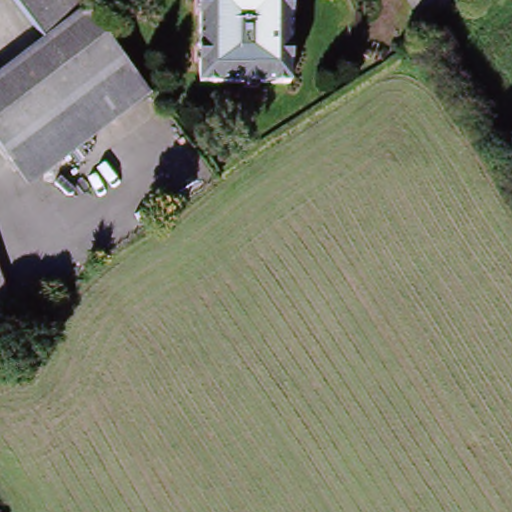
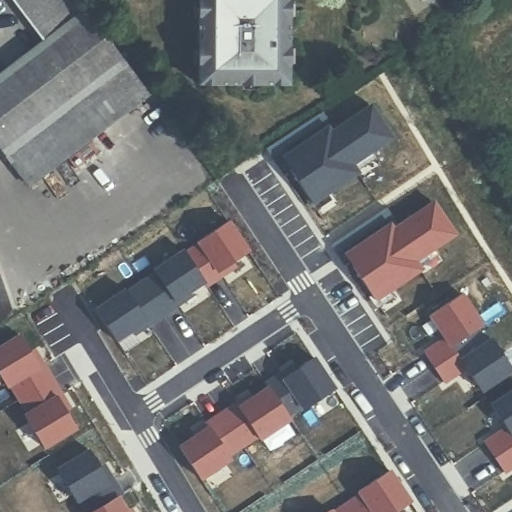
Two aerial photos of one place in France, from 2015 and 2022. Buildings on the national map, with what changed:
unchanged [(13,5),(9,0),(29,0),(13,5)]
unchanged [(29,0),(73,0),(80,10),(40,40),(13,5),(29,0)]
unchanged [(290,85),(200,85),(200,0),(290,0),(290,85)]
unchanged [(80,10),(144,94),(25,186),(0,154),(0,71),(40,40),(80,10)]
new [(372,108),(394,140),(353,167),(359,175),(314,206),(292,172),(336,143),(331,135),(372,108)]
new [(273,159),(267,151),(324,114),(329,122),(273,159)]
new [(336,143),(292,172),(284,160),(328,131),(336,143)]
new [(435,205),(457,236),(416,264),(422,272),(376,303),(355,269),(399,239),(394,232),(435,205)]
new [(388,210),(393,218),(337,255),(332,247),(388,210)]
new [(224,277),(207,288),(205,284),(206,283),(188,256),(202,247),(200,243),(230,223),(250,254),(235,264),(237,268),(224,277)]
new [(399,239),(355,269),(346,257),(391,228),(399,239)]
new [(206,283),(176,303),(155,273),(186,252),(206,283)]
demolished [(13,315),(0,324),(0,276),(13,315)]
new [(0,324),(0,276),(13,315),(0,324)]
new [(132,332),(117,342),(97,312),(127,292),(130,295),(158,276),(176,303),(177,303),(191,293),(193,297),(180,307),(149,327),(135,336),(132,332)]
new [(483,328),(452,348),(431,317),(462,297),(483,328)]
new [(488,345),(462,362),(467,370),(445,385),(425,355),(447,341),(452,348),(479,330),(488,345)]
new [(21,337),(40,369),(11,386),(8,388),(0,375),(0,351),(21,337)]
new [(512,371),(512,374),(482,393),(462,362),(492,342),(512,371)]
new [(67,414),(59,399),(58,398),(30,415),(11,386),(40,369),(40,368),(31,353),(36,350),(45,365),(63,397),(71,411),(67,414)]
new [(315,359),(336,391),(305,411),(284,380),(315,359)]
new [(303,409),(289,418),(270,389),(269,389),(266,386),(282,375),(296,366),(299,370),(285,379),(284,380),(303,409)]
new [(270,389),(291,421),(260,441),(240,409),(270,389)]
new [(207,425),(237,405),(251,395),(255,400),(240,409),(258,438),(230,457),(211,428),(210,429),(195,439),(193,435),(207,425)]
new [(512,438),(492,408),(512,395),(512,438)]
new [(45,449),(25,417),(58,398),(77,429),(45,449)]
new [(211,428),(232,460),(202,481),(180,449),(211,428)]
new [(512,471),(506,475),(485,445),(507,430),(512,437),(512,471)]
new [(91,452),(100,468),(110,484),(77,503),(58,472),(91,452)]
new [(100,468),(105,466),(113,480),(123,496),(119,499),(118,498),(95,512),(87,512),(81,501),(110,484),(110,483),(100,468)]
new [(401,512),(372,512),(360,493),(391,473),(412,505),(401,512)]
new [(372,512),(339,512),(362,497),(372,512)]

